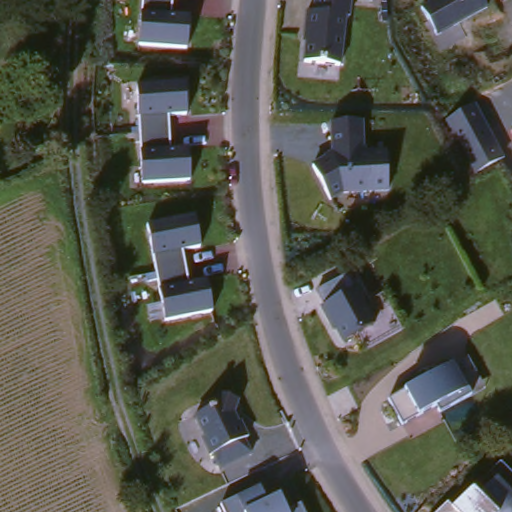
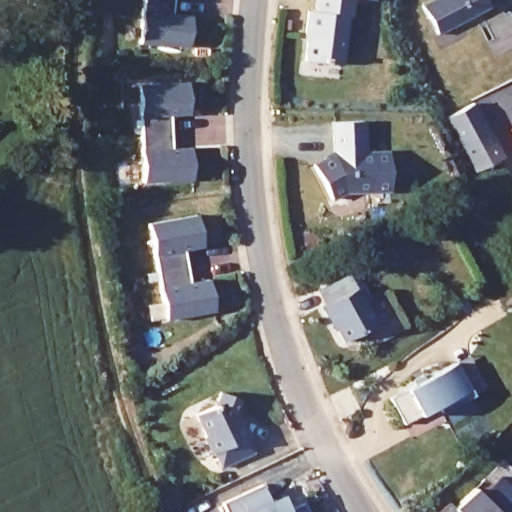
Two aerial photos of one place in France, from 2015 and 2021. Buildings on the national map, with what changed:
unchanged [(141,0),(170,0),(169,12),(187,14),(185,46),(140,44),(141,0)]
unchanged [(315,0),(351,0),(350,14),(346,14),(342,62),(307,60),(308,33),(306,32),(307,10),(314,11),(315,0)]
unchanged [(419,6),(429,0),(483,0),(488,10),(439,37),(419,6)]
unchanged [(142,181),(137,85),(183,83),(183,112),(169,112),(169,145),(190,144),(191,179),(142,181)]
unchanged [(476,174),(445,118),(475,102),(506,156),(476,174)]
unchanged [(335,150),(332,118),(362,117),(365,149),(388,148),(390,186),(346,187),(333,195),(313,162),(335,150)]
unchanged [(165,322),(147,222),(192,216),(197,244),(184,246),(190,283),(207,281),(211,310),(165,322)]
unchanged [(355,288),(358,287),(367,302),(365,303),(377,325),(347,342),(333,320),(331,322),(323,307),(325,306),(317,292),(339,280),(347,275),(355,288)]
unchanged [(480,390),(448,408),(445,402),(411,421),(397,395),(461,358),(480,390)]
unchanged [(242,422),(244,420),(252,437),(249,438),(255,452),(224,467),(217,452),(215,453),(207,437),(209,436),(199,415),(217,406),(222,392),(242,399),(237,412),(242,422)]
unchanged [(472,486),(479,492),(495,475),(512,492),(512,512),(443,512),(472,486)]
unchanged [(274,501),(285,496),(291,510),(305,503),(309,512),(229,512),(225,502),(265,484),(274,501)]

